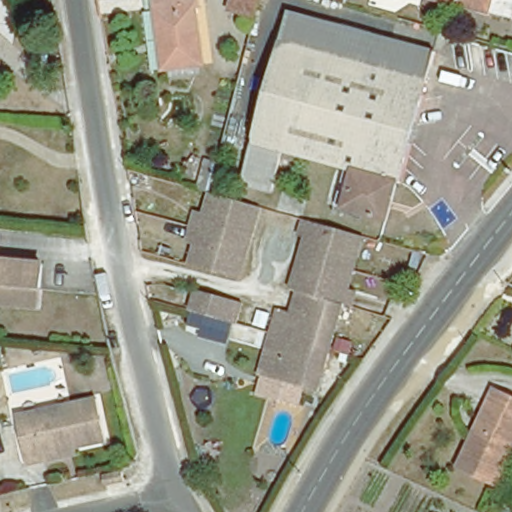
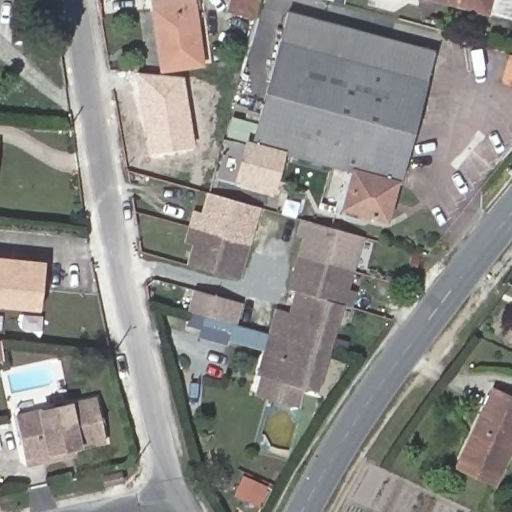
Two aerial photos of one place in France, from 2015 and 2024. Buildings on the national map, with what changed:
unchanged [(201,64),(164,70),(153,0),(192,0),(201,64)]
unchanged [(227,11),(230,0),(256,0),(251,18),(227,11)]
unchanged [(512,19),(441,0),(512,0),(512,19)]
unchanged [(251,138),(286,9),(435,50),(390,217),(343,204),(354,164),(288,146),(283,165),(275,162),(268,189),(216,175),(229,132),(251,138)]
new [(195,147),(149,154),(137,72),(184,77),(195,147)]
unchanged [(195,186),(201,162),(215,167),(209,190),(195,186)]
unchanged [(195,227),(200,212),(206,213),(213,191),(262,204),(243,277),(194,262),(199,242),(192,241),(195,227)]
unchanged [(333,355),(279,340),(287,311),(303,315),(309,295),(300,292),(315,241),(305,236),(309,220),(326,225),(366,235),(350,290),(346,304),(333,355)]
unchanged [(28,307),(0,304),(0,260),(44,265),(41,292),(40,308),(28,307)]
unchanged [(192,309),(198,287),(242,300),(236,321),(192,309)]
unchanged [(268,380),(279,340),(333,355),(321,396),(268,380)]
unchanged [(512,462),(500,491),(453,472),(492,386),(512,395),(512,462)]
unchanged [(44,458),(25,462),(15,416),(95,397),(105,441),(74,447),(75,452),(44,458)]
unchanged [(101,475),(111,472),(119,471),(121,481),(114,482),(104,485),(101,475)]

